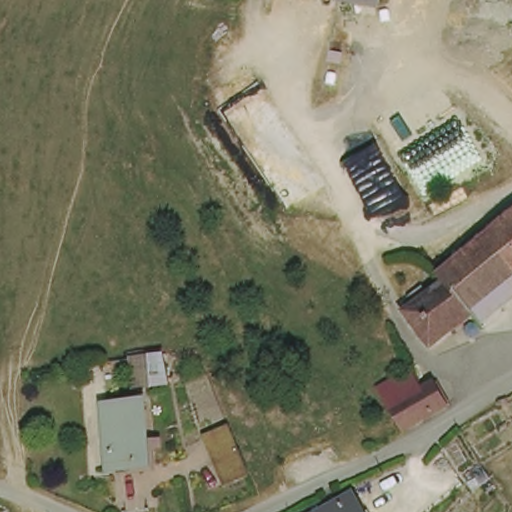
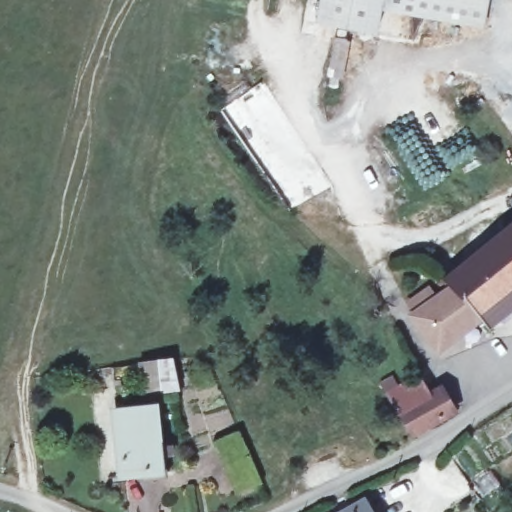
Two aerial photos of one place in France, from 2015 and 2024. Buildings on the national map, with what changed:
new [(378,35),(315,24),(320,0),(384,0),(378,35)]
new [(484,30),(382,11),(384,0),(489,0),(484,30)]
unchanged [(411,307),(451,279),(443,270),(512,219),(512,288),(438,342),(411,307)]
unchanged [(205,372),(190,375),(186,342),(201,340),(205,372)]
unchanged [(442,398),(415,412),(396,377),(422,362),(442,398)]
unchanged [(120,473),(115,408),(152,405),(159,470),(120,473)]
unchanged [(237,494),(213,441),(236,432),(257,485),(237,494)]
unchanged [(367,512),(346,512),(363,505),(367,512)]

